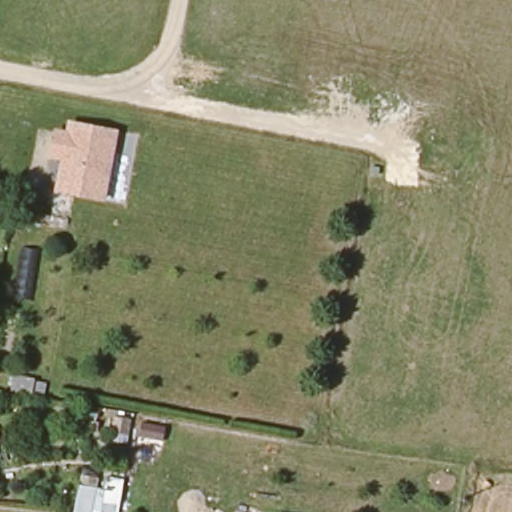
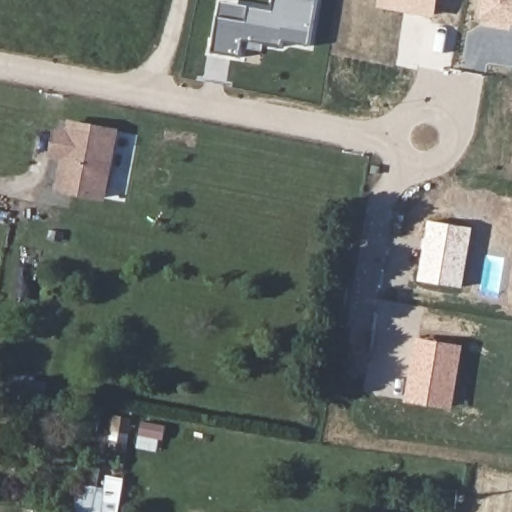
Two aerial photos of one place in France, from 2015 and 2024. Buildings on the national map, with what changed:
new [(317,0),(308,47),(285,42),(283,53),(242,46),(240,58),(212,53),(221,2),(271,11),(273,0),(317,0)]
new [(377,7),(379,0),(438,0),(434,17),(377,7)]
new [(484,0),(512,0),(512,24),(480,18),(484,0)]
unchanged [(106,199),(56,190),(59,161),(49,159),(54,129),(66,130),(67,121),(119,130),(106,199)]
new [(418,281),(429,220),(473,227),(463,288),(418,281)]
new [(451,409),(404,402),(417,336),(462,345),(451,409)]
unchanged [(84,487),(121,495),(118,512),(79,512),(84,487)]

